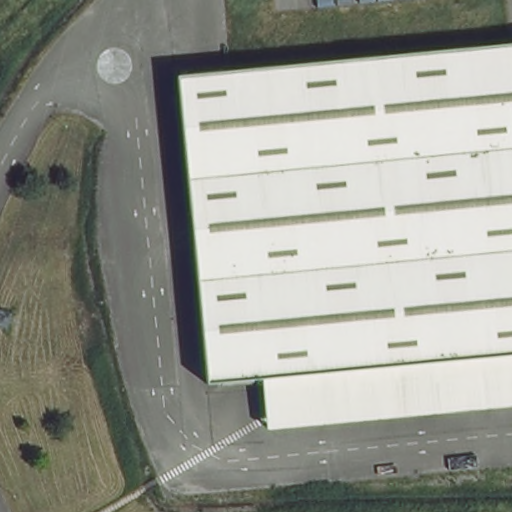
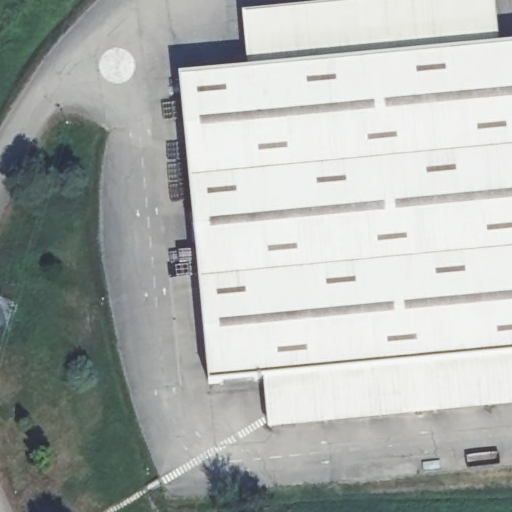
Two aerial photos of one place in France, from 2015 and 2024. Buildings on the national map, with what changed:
new [(243,22),(472,0),(493,0),(498,47),(248,72),(243,22)]
unchanged [(208,387),(178,78),(248,72),(498,47),(512,46),(512,357),(264,381),(208,387)]
unchanged [(512,357),(512,406),(269,430),(264,381),(512,357)]

